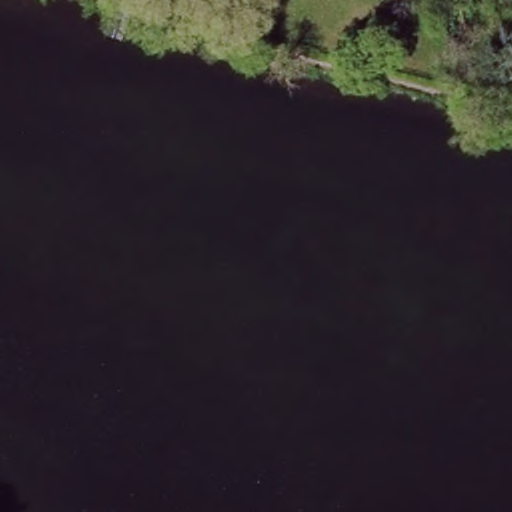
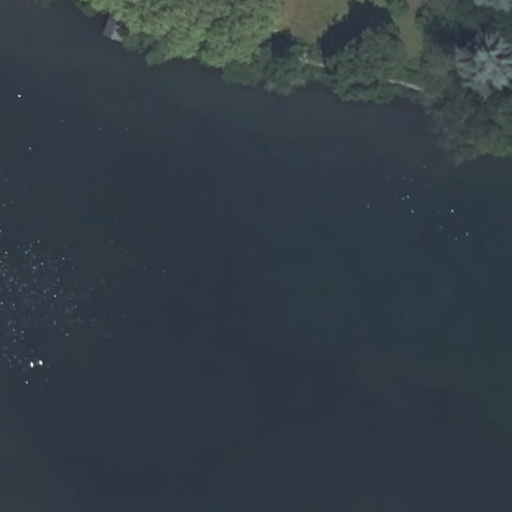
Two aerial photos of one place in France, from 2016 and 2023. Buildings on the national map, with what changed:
unchanged [(122,37),(102,31),(111,0),(132,7),(122,37)]

